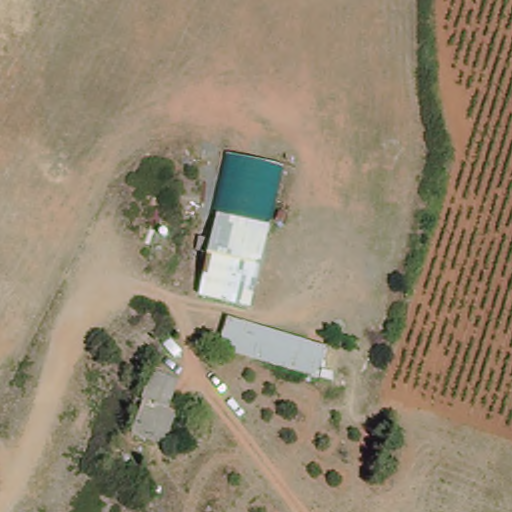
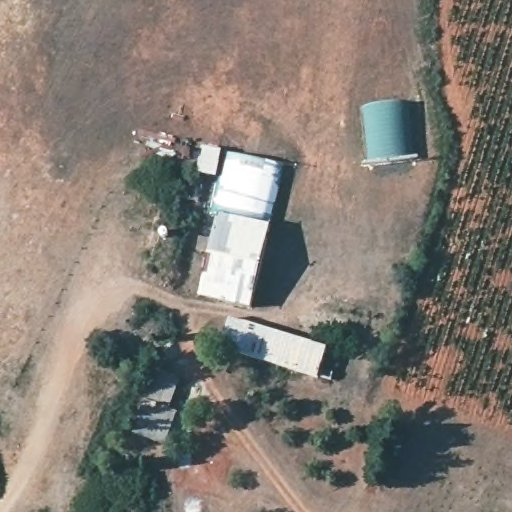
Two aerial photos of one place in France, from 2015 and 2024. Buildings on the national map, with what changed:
new [(370,164),(362,109),(410,102),(418,157),(370,164)]
unchanged [(217,214),(210,213),(226,153),(282,169),(280,184),(295,189),(286,219),(275,217),(251,313),(198,297),(217,214)]
unchanged [(222,320),(327,353),(319,379),(217,350),(222,320)]
unchanged [(151,446),(130,436),(146,398),(168,410),(151,446)]

